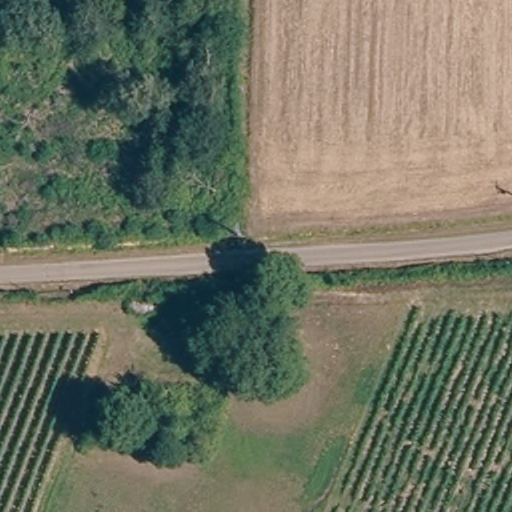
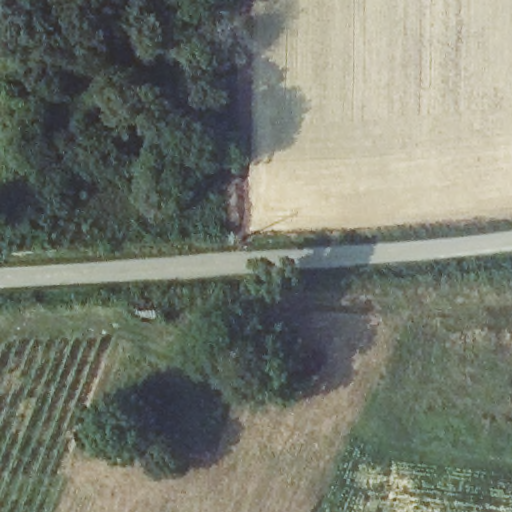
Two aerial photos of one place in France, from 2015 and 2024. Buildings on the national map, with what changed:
[]

